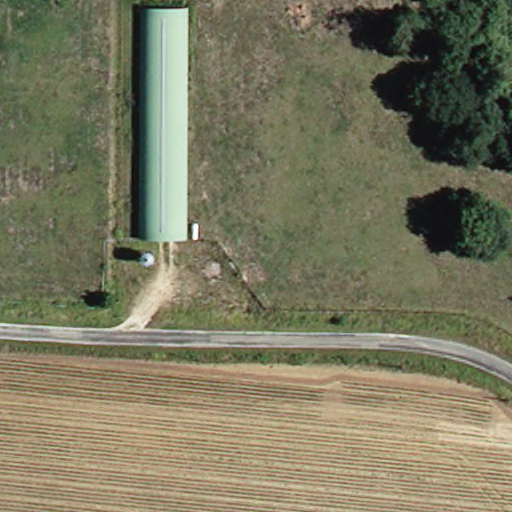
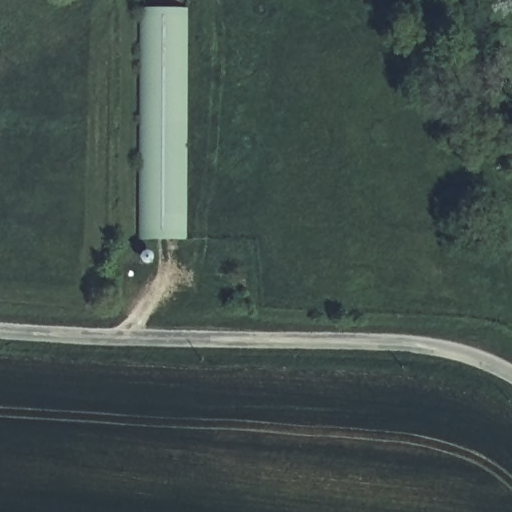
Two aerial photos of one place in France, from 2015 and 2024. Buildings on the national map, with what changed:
unchanged [(129,236),(142,4),(189,7),(174,241),(159,239),(155,257),(142,255),(127,252),(129,236)]

